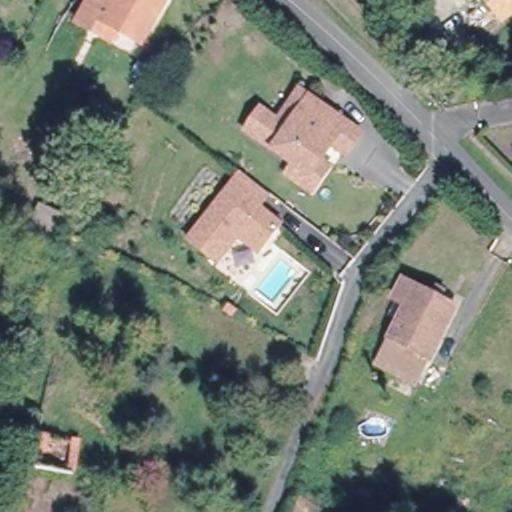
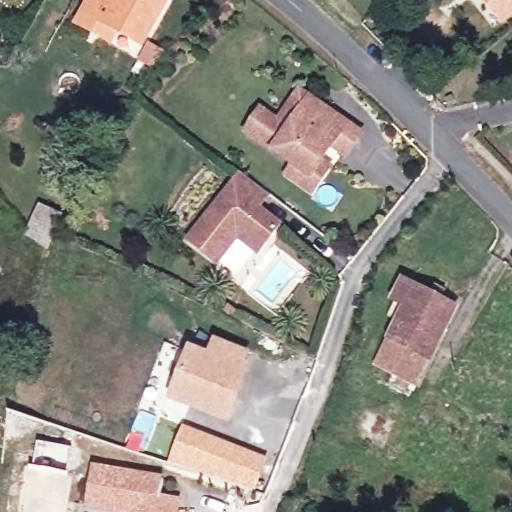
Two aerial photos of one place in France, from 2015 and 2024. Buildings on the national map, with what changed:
unchanged [(140,42),(117,29),(111,39),(78,20),(89,0),(162,0),(163,0),(140,42)]
unchanged [(512,17),(502,25),(482,0),(512,0),(512,17)]
unchanged [(311,187),(287,170),(294,160),(247,126),(262,105),(280,117),(292,100),(302,87),(311,94),(362,130),(346,151),(333,141),(321,157),(329,162),(311,187)]
unchanged [(269,193),(259,206),(281,222),(258,251),(238,235),(217,262),(188,239),(241,171),(269,193)]
unchanged [(25,231),(41,202),(65,214),(47,247),(25,231)]
unchanged [(453,308),(417,381),(380,363),(406,307),(396,302),(405,283),(453,308)]
unchanged [(237,309),(232,315),(224,309),(229,303),(237,309)]
new [(208,352),(214,338),(251,354),(245,367),(250,368),(229,424),(168,399),(189,344),(208,352)]
unchanged [(58,443),(54,443),(53,450),(23,445),(28,417),(61,423),(58,443)]
new [(183,425),(268,456),(255,490),(168,461),(183,425)]
demolished [(96,450),(92,477),(49,470),(53,450),(54,443),(58,443),(96,450)]
new [(161,495),(181,497),(179,512),(116,512),(86,506),(93,462),(164,475),(161,495)]

